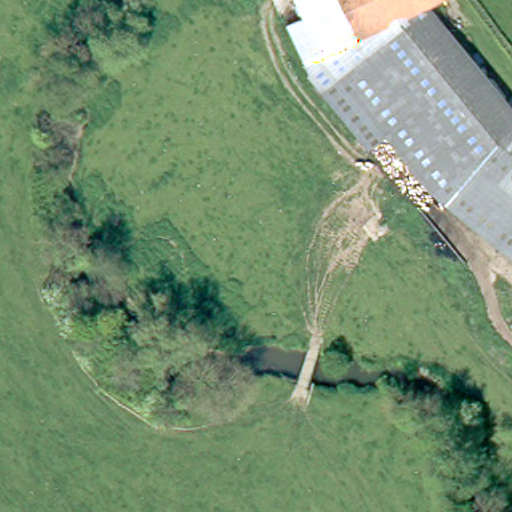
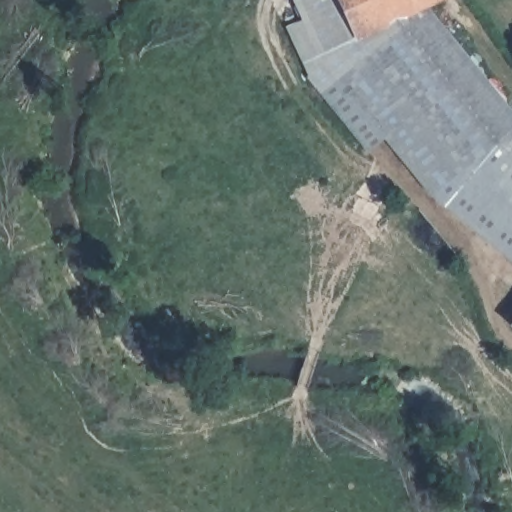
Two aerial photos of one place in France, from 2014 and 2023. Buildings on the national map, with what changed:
unchanged [(512,258),(438,198),(388,138),(370,150),(310,76),(313,74),(287,27),(304,19),(294,0),(337,0),(347,20),(356,36),(425,2),(512,114),(512,124),(471,157),(512,191),(512,258)]
unchanged [(425,2),(356,36),(347,20),(337,0),(429,0),(425,2)]
unchanged [(512,124),(512,191),(471,157),(512,124)]

